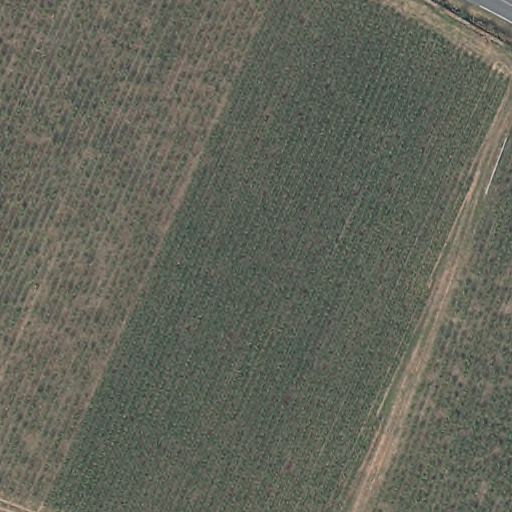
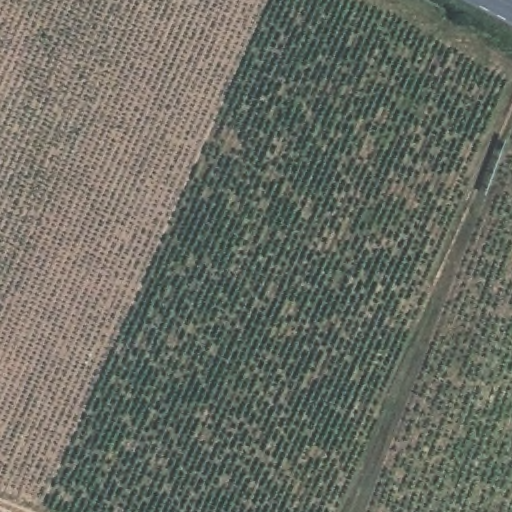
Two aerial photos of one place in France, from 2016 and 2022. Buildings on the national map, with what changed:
[]

